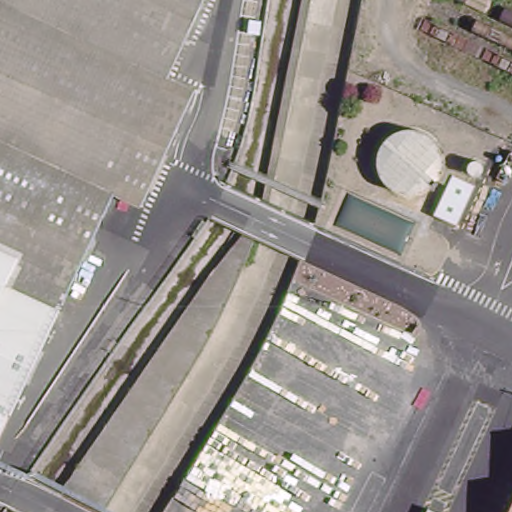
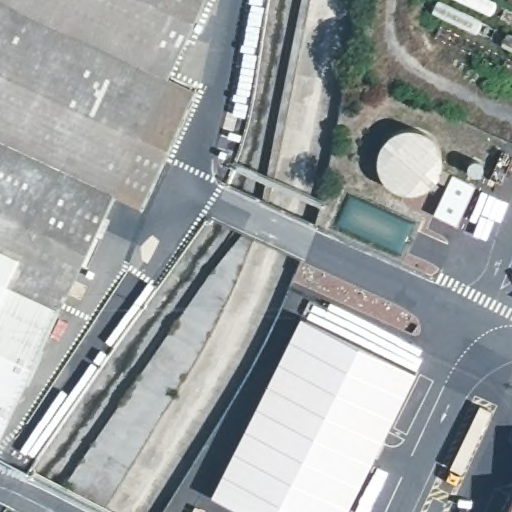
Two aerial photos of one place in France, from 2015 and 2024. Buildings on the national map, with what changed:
unchanged [(115,189),(5,428),(0,426),(0,0),(200,0),(167,73),(115,189)]
unchanged [(167,73),(194,85),(142,201),(115,189),(167,73)]
new [(346,512),(242,512),(211,496),(301,317),(416,373),(346,512)]
unchanged [(0,440),(0,426),(5,428),(0,440)]

